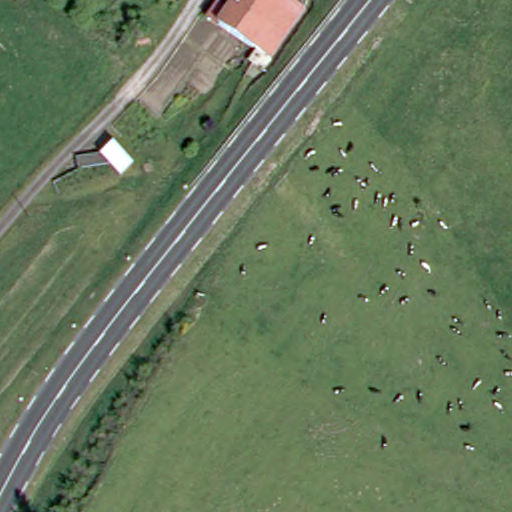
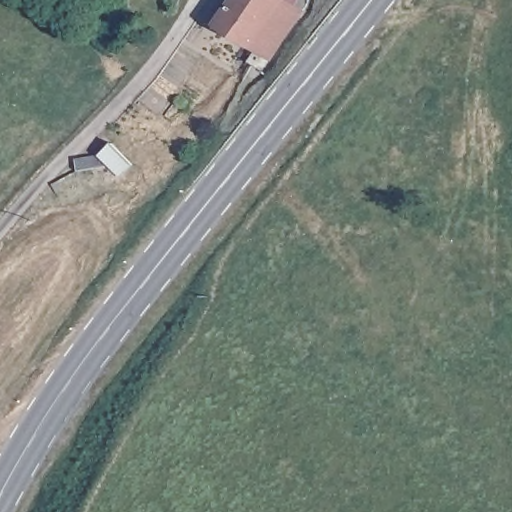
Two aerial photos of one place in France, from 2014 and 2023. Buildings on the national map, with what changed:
unchanged [(248,45),(213,21),(228,0),(280,0),(248,45)]
unchanged [(280,0),(286,0),(307,14),(268,59),(248,45),(280,0)]

